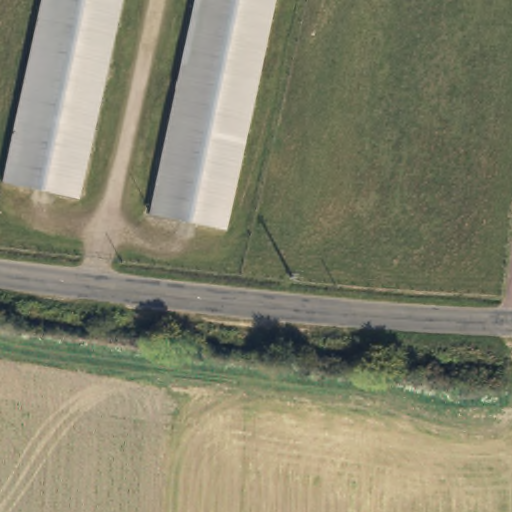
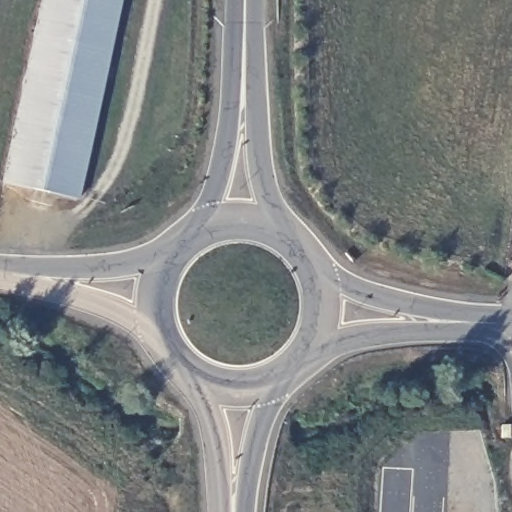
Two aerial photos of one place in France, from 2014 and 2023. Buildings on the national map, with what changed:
unchanged [(41,0),(122,0),(75,204),(1,188),(41,0)]
demolished [(198,0),(279,0),(225,236),(151,220),(198,0)]

